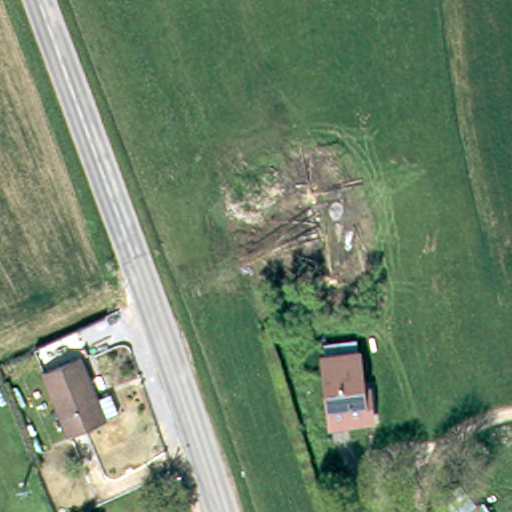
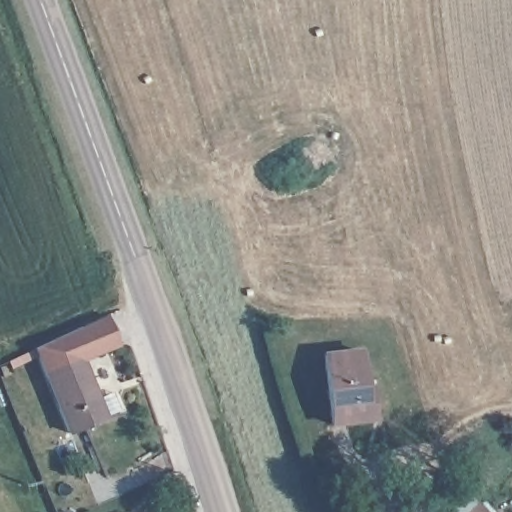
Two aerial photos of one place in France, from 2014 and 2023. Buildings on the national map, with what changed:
new [(106,316),(119,346),(79,364),(76,356),(41,370),(33,349),(106,316)]
unchanged [(378,417),(332,419),(330,351),(355,351),(366,350),(367,387),(369,393),(377,393),(378,417)]
unchanged [(115,408),(99,415),(100,416),(65,430),(41,370),(76,356),(92,398),(108,391),(115,408)]
unchanged [(494,512),(452,512),(481,490),(494,512)]

